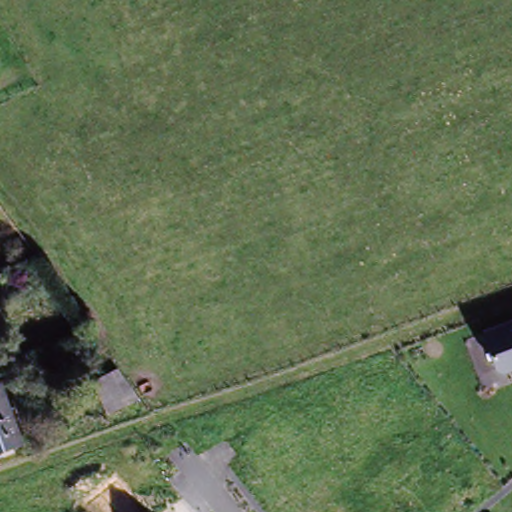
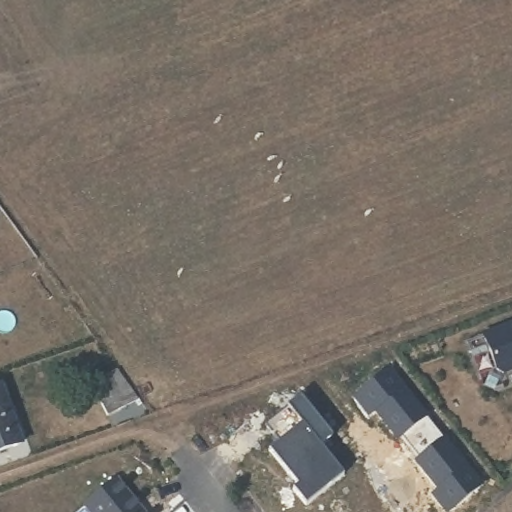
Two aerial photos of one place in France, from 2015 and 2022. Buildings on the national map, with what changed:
unchanged [(496,370),(482,334),(512,323),(512,372),(504,375),(496,370)]
new [(388,366),(425,413),(425,414),(443,436),(444,435),(481,482),(447,510),(432,492),(438,487),(420,465),(423,463),(395,428),(392,430),(375,408),(368,413),(354,394),(388,366)]
unchanged [(111,375),(132,404),(103,418),(87,387),(111,375)]
unchanged [(17,442),(0,448),(0,396),(17,442)]
new [(325,449),(349,479),(310,509),(297,493),(303,488),(273,451),(284,443),(269,424),(290,407),(303,423),(316,413),(337,439),(325,449)]

